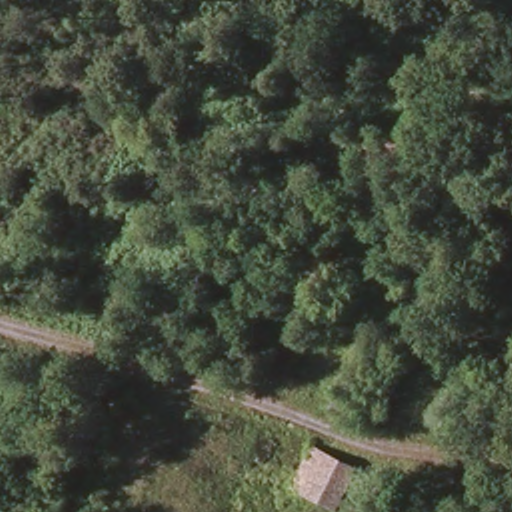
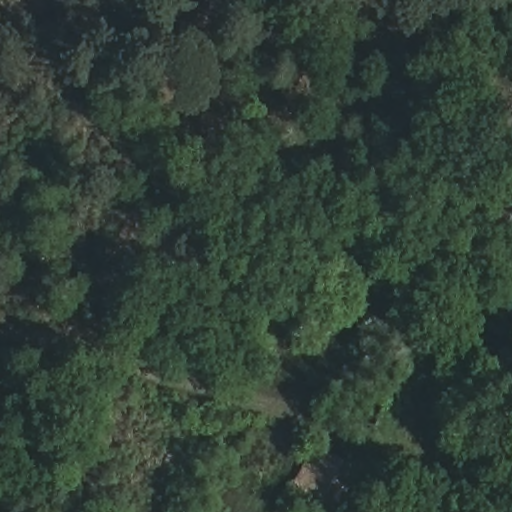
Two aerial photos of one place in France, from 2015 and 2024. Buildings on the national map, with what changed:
unchanged [(444,243),(398,218),(416,189),(461,212),(444,243)]
unchanged [(328,320),(298,306),(316,275),(344,292),(328,320)]
unchanged [(357,469),(336,512),(331,512),(290,491),(311,447),(357,469)]

